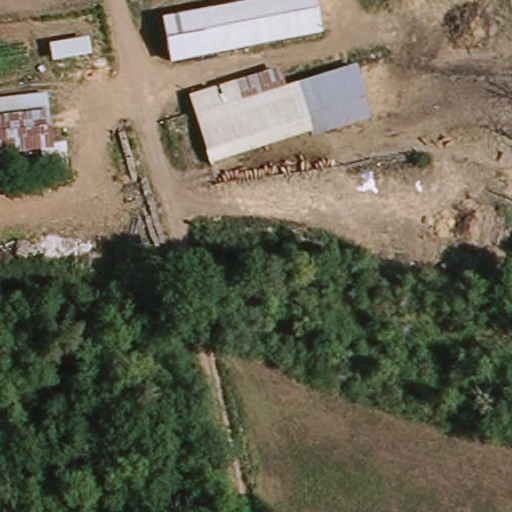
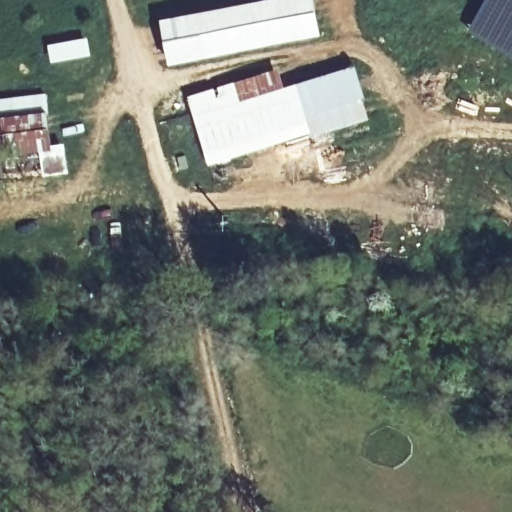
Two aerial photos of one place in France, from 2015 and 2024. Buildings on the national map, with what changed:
unchanged [(309,0),(315,36),(163,66),(156,23),(271,0),(309,0)]
new [(512,0),(512,60),(466,34),(486,0),(512,0)]
unchanged [(208,161),(189,96),(273,72),(279,91),(357,72),(358,86),(365,119),(359,120),(208,161)]
unchanged [(47,151),(0,156),(0,117),(42,112),(47,151)]

